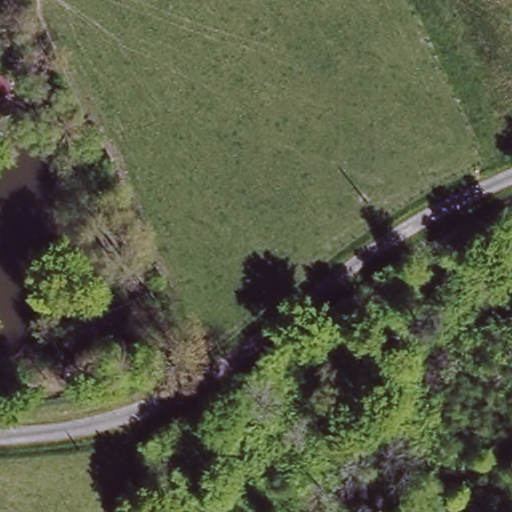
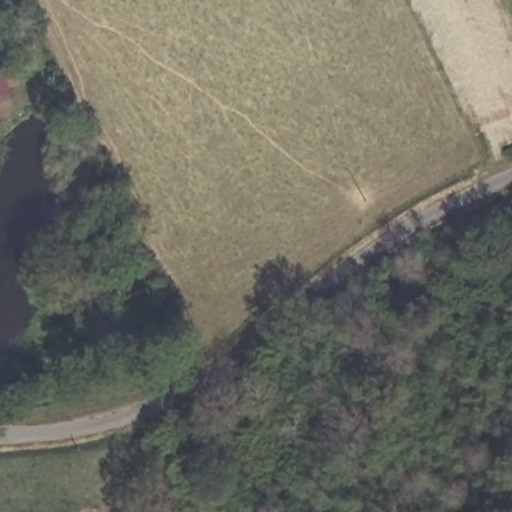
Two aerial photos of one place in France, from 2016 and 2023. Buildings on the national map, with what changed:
unchanged [(4,67),(9,82),(0,84),(0,68),(4,67)]

